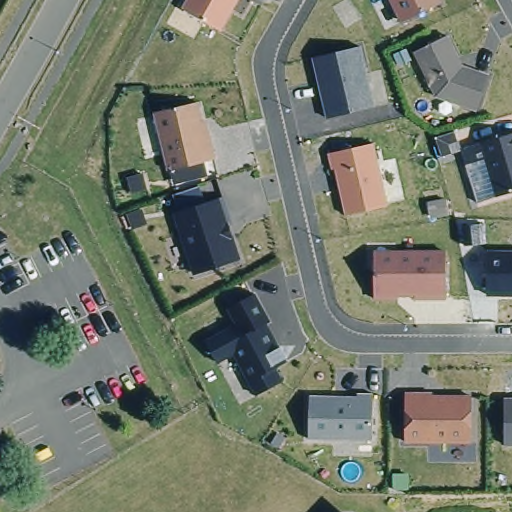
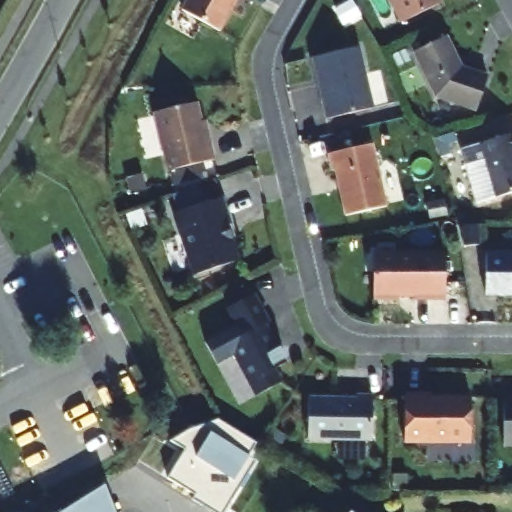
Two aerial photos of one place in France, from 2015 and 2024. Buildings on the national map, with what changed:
unchanged [(224,32),(184,9),(189,0),(242,0),(224,32)]
unchanged [(442,3),(404,22),(393,0),(440,0),(442,3)]
unchanged [(447,36),(459,58),(457,59),(460,66),(490,76),(478,109),(437,96),(416,51),(447,36)]
unchanged [(361,46),(376,107),(329,118),(314,57),(361,46)]
unchanged [(156,112),(199,102),(206,132),(210,131),(216,159),(170,170),(156,112)]
unchanged [(482,143),(512,134),(512,193),(497,197),(482,143)]
unchanged [(347,215),(337,168),(334,169),(330,153),(375,143),(389,205),(347,215)]
unchanged [(233,223),(227,225),(230,237),(232,237),(240,260),(197,274),(177,212),(225,196),(233,223)]
unchanged [(482,293),(482,245),(512,247),(512,295),(482,293)]
unchanged [(447,298),(416,298),(416,296),(400,295),(400,298),(375,298),(375,256),(400,256),(404,251),(447,251),(447,298)]
unchanged [(207,342),(239,324),(230,307),(256,293),(271,322),(267,324),(280,348),(282,347),(287,358),(285,359),(287,362),(276,368),(283,381),(241,404),(207,342)]
unchanged [(472,442),(406,441),(407,393),(434,393),(434,396),(473,396),(472,442)]
unchanged [(310,439),(311,396),(359,397),(359,394),(375,394),(374,440),(310,439)]
unchanged [(506,444),(506,399),(512,399),(512,444),(506,444)]
new [(255,461),(224,512),(216,512),(193,498),(196,493),(168,477),(186,448),(173,439),(194,426),(218,418),(255,443),(248,455),(255,461)]
new [(112,512),(65,512),(103,488),(112,512)]

